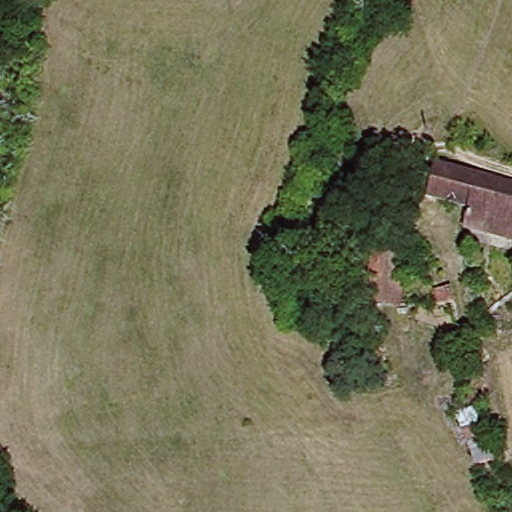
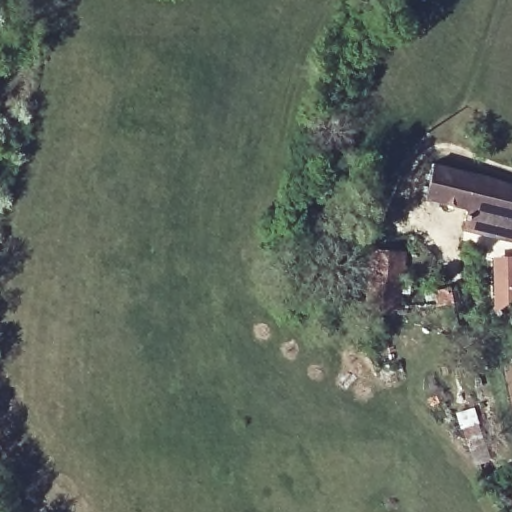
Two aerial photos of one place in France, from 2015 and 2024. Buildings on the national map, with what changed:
unchanged [(424,203),(434,168),(512,188),(512,245),(454,231),(459,212),(424,203)]
unchanged [(400,313),(394,312),(359,307),(364,259),(366,251),(372,250),(401,255),(401,263),(400,313)]
new [(500,312),(494,312),(493,266),(497,266),(494,259),(512,257),(512,305),(500,305),(500,312)]
unchanged [(446,304),(432,301),(434,284),(448,287),(446,304)]
unchanged [(409,313),(426,316),(427,331),(410,329),(409,313)]

